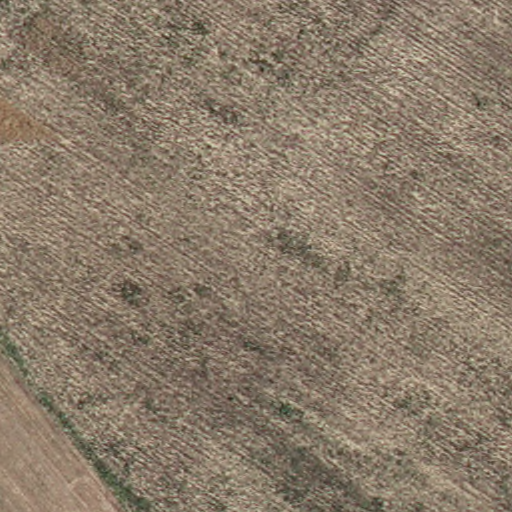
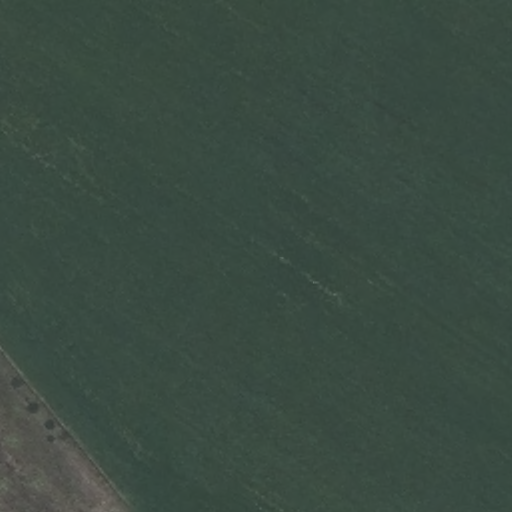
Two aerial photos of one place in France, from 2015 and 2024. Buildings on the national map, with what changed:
[]

